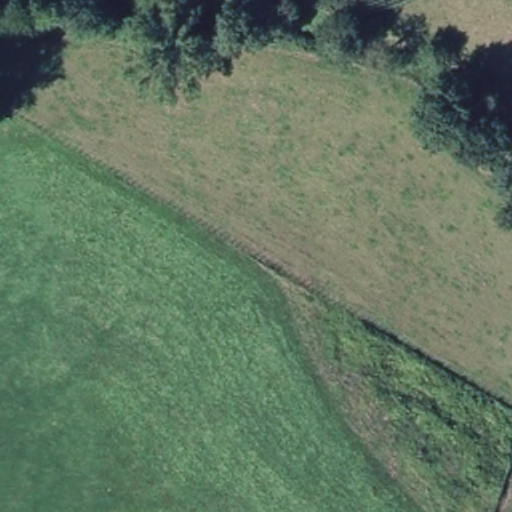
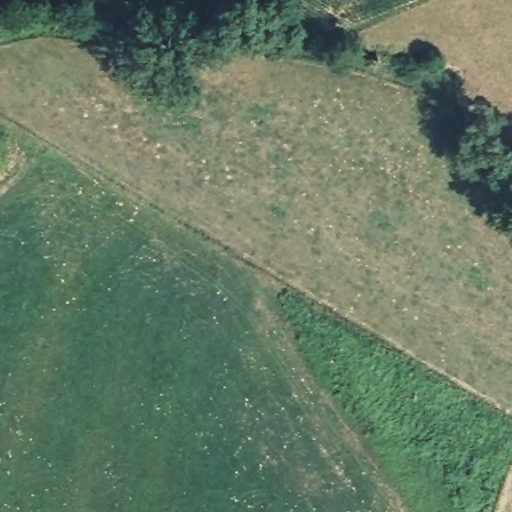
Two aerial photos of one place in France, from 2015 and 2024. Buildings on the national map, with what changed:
[]

